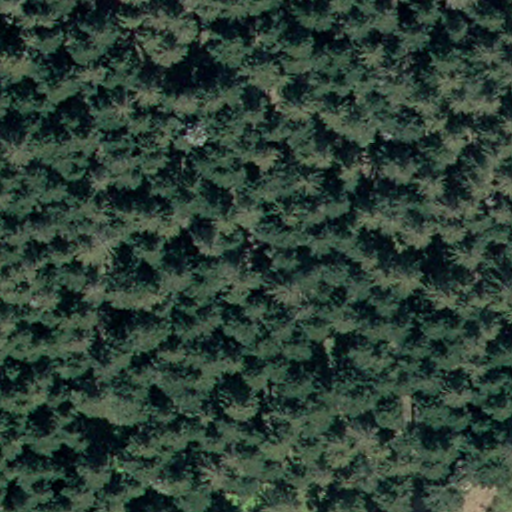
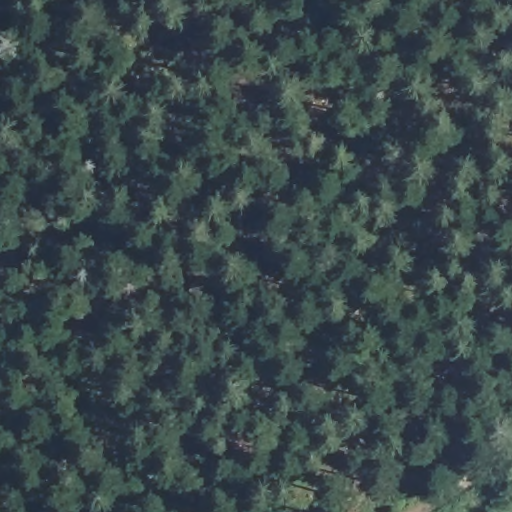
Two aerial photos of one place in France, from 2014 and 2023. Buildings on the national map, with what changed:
[]

